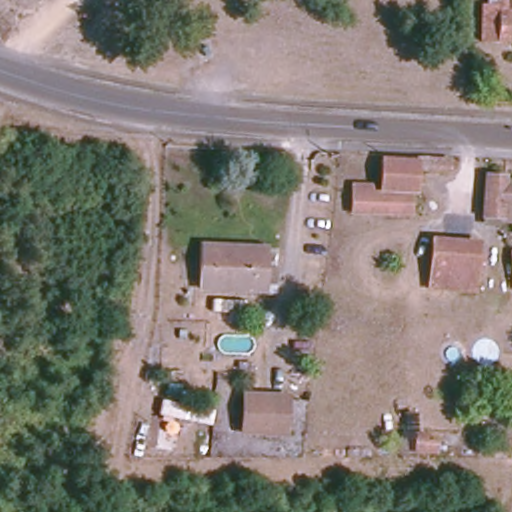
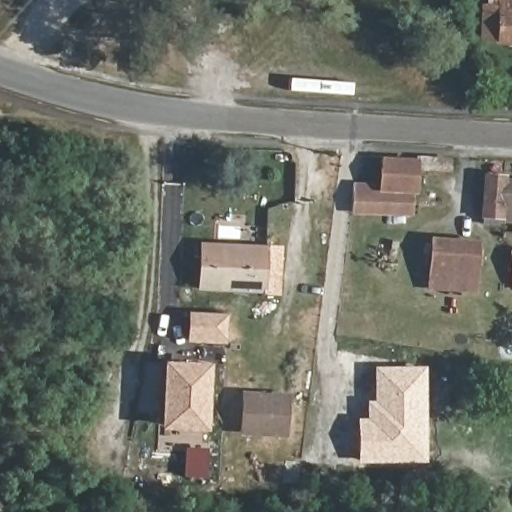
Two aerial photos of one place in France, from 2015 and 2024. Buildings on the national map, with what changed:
unchanged [(483,6),(489,6),(489,0),(512,0),(512,45),(481,43),(483,6)]
unchanged [(416,171),(416,193),(411,193),(411,215),(353,213),(355,185),(371,186),(371,190),(381,191),(382,160),(417,161),(417,157),(424,158),(428,158),(450,159),(450,172),(416,171)]
unchanged [(512,222),(506,221),(506,217),(483,216),(486,176),(505,178),(505,181),(512,182),(512,222)]
unchanged [(478,243),(475,292),(429,288),(433,240),(478,243)]
unchanged [(266,248),(264,292),(200,289),(202,245),(266,248)]
unchanged [(512,251),(512,291),(510,251),(512,251)]
new [(225,344),(186,343),(187,312),(226,314),(225,340),(225,344)]
new [(210,363),(207,433),(159,429),(162,361),(210,363)]
new [(357,419),(367,419),(366,401),(373,401),(373,368),(425,366),(427,462),(357,462),(357,419)]
unchanged [(287,397),(285,435),(243,434),(245,395),(287,397)]
demolished [(415,416),(415,431),(408,431),(407,416),(415,416)]
new [(181,432),(177,453),(155,448),(160,428),(181,432)]
demolished [(438,442),(437,454),(416,453),(416,441),(438,442)]
new [(207,478),(186,478),(187,447),(208,448),(207,478)]

